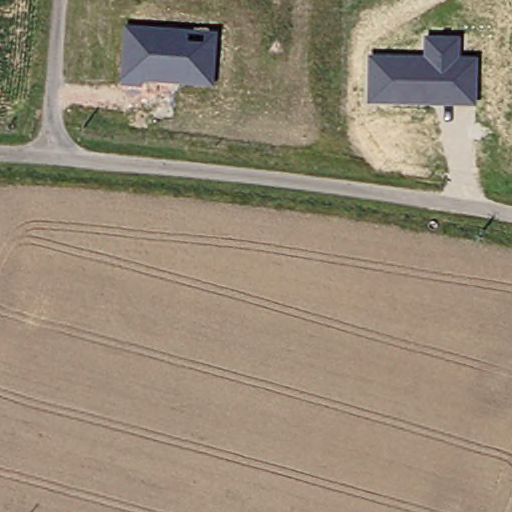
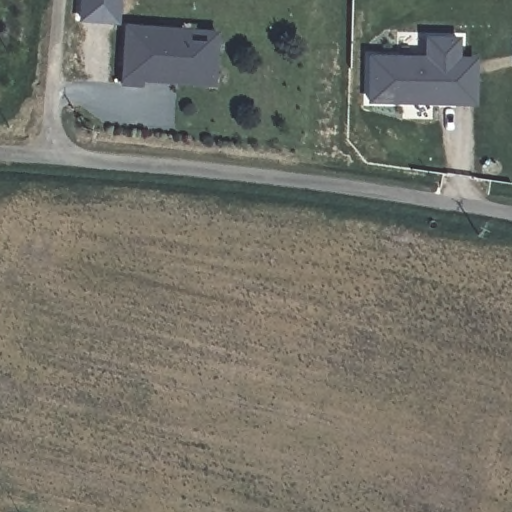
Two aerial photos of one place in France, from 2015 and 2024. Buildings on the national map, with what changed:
new [(119,24),(78,22),(79,0),(121,0),(119,24)]
unchanged [(217,31),(214,86),(142,81),(142,87),(120,86),(125,25),(217,31)]
unchanged [(368,55),(424,56),(424,37),(459,37),(460,57),(477,57),(476,105),(367,104),(368,55)]

